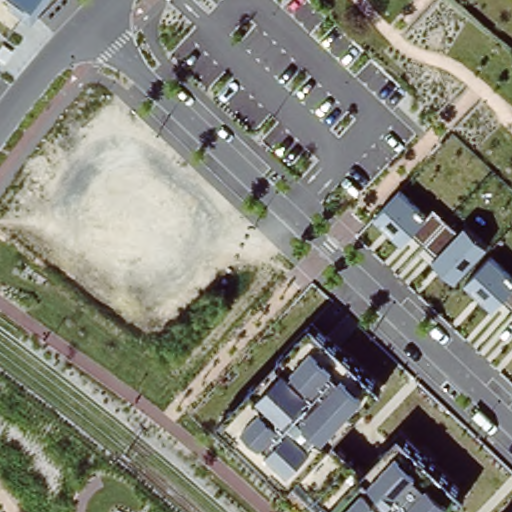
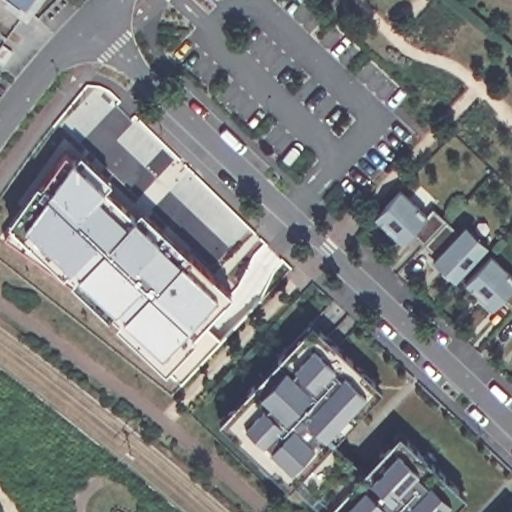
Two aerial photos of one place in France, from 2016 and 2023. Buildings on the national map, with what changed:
unchanged [(28,18),(3,1),(4,0),(41,0),(28,18)]
new [(204,323),(222,341),(181,385),(93,300),(3,235),(65,147),(182,257),(190,252),(233,293),(204,323)]
unchanged [(402,190),(427,215),(434,209),(459,232),(469,223),(489,245),(457,279),(434,257),(411,233),(403,243),(376,217),(402,190)]
unchanged [(494,255),(512,275),(512,304),(505,298),(494,310),(467,283),(494,255)]
unchanged [(219,418),(313,321),(381,388),(332,441),(364,470),(399,432),(464,495),(449,512),(314,512),(286,484),(219,418)]
unchanged [(512,511),(512,512),(510,512),(512,510),(512,511)]

